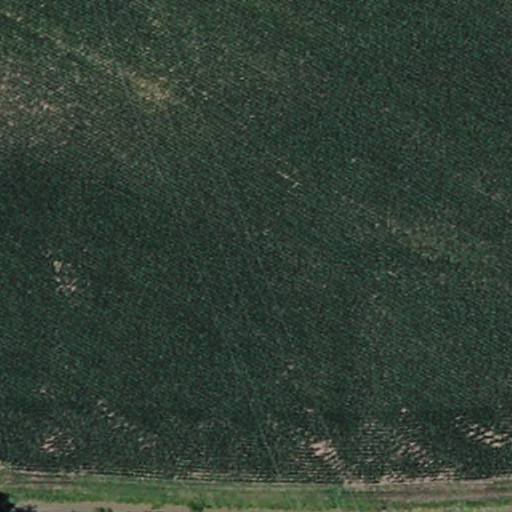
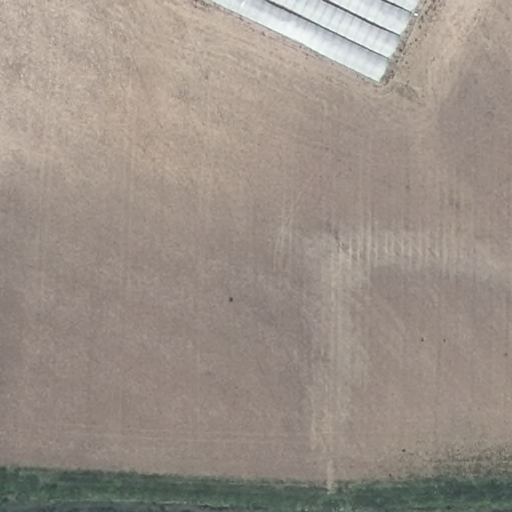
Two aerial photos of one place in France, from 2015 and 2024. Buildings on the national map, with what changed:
new [(380,81),(212,0),(419,0),(380,81)]

